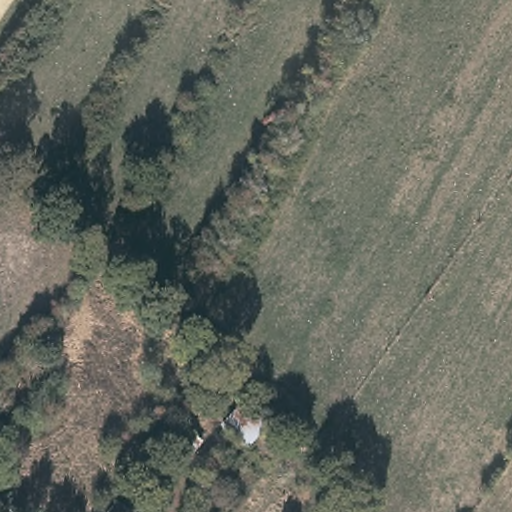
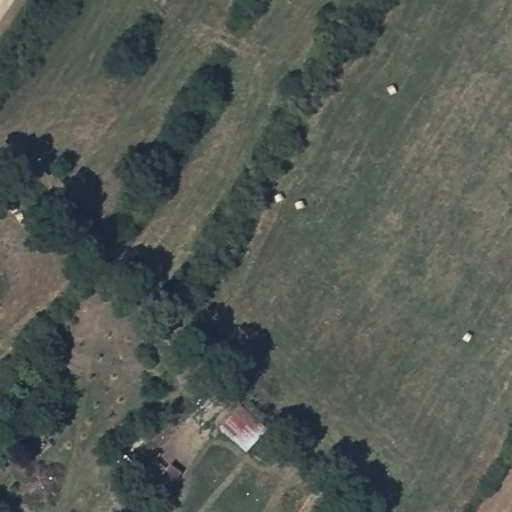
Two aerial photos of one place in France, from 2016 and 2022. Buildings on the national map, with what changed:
unchanged [(256,435),(237,458),(208,429),(228,406),(256,435)]
unchanged [(182,438),(194,449),(161,489),(149,479),(182,438)]

